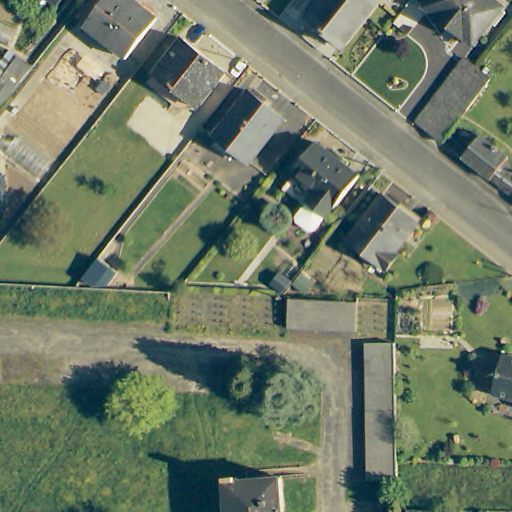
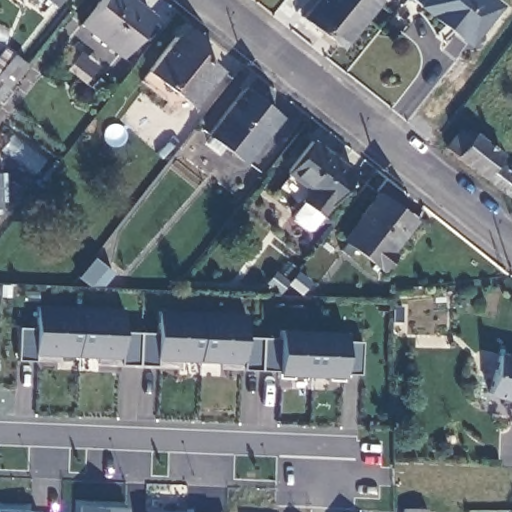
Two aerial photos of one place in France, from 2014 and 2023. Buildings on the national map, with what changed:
unchanged [(57,1),(56,0),(58,0),(57,1)]
unchanged [(99,0),(131,0),(151,16),(118,55),(79,23),(99,0)]
unchanged [(343,49),(306,20),(322,0),(380,0),(343,49)]
unchanged [(426,0),(486,0),(497,9),(467,47),(419,9),(426,0)]
unchanged [(180,40),(222,74),(193,109),(152,76),(180,40)]
unchanged [(461,52),(466,56),(487,71),(440,134),(412,114),(461,52)]
unchanged [(11,55),(24,66),(0,95),(0,68),(11,55)]
unchanged [(248,91),(283,120),(247,165),(212,136),(248,91)]
unchanged [(467,126),(506,155),(503,164),(512,164),(512,196),(452,146),(467,126)]
unchanged [(305,226),(294,217),(293,211),(302,200),(301,199),(309,188),(287,171),(313,139),(356,172),(322,215),(320,214),(310,225),(305,226)]
new [(1,172),(7,172),(8,201),(4,202),(4,209),(0,209),(0,172),(1,172)]
unchanged [(380,191),(415,220),(391,250),(394,253),(381,270),(342,237),(380,191)]
unchanged [(87,261),(98,270),(86,285),(75,275),(87,261)]
demolished [(284,301),(353,305),(351,335),(282,332),(284,301)]
new [(361,373),(345,374),(345,377),(344,380),(331,379),(332,376),(294,375),(293,377),(279,377),(280,374),(280,371),(244,368),(225,368),(226,362),(182,360),(181,369),(100,365),(100,357),(60,355),(60,362),(20,360),(21,327),(37,330),(40,304),(125,307),(125,331),(160,335),(161,309),(247,313),(247,336),(281,340),(281,328),(347,330),(347,340),(362,341),(361,373)]
unchanged [(512,343),(512,403),(488,397),(503,341),(512,343)]
demolished [(362,485),(362,462),(362,405),(362,348),(391,347),(390,470),(390,475),(390,485),(362,485)]
demolished [(225,512),(222,487),(276,482),(279,512),(225,512)]
new [(82,512),(82,505),(130,507),(130,512),(82,512)]
new [(30,511),(30,512),(0,512),(0,510),(30,511)]
new [(203,512),(151,512),(151,510),(203,512)]

